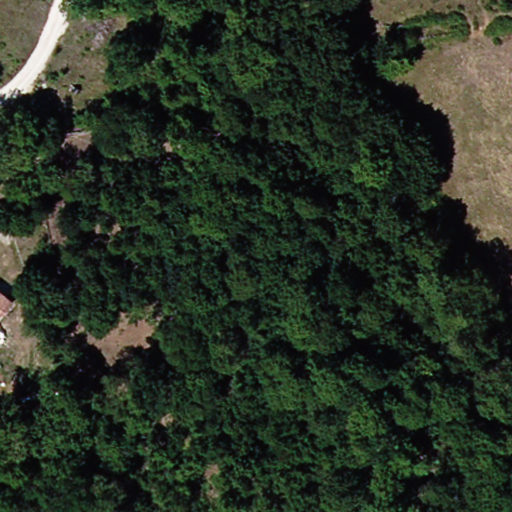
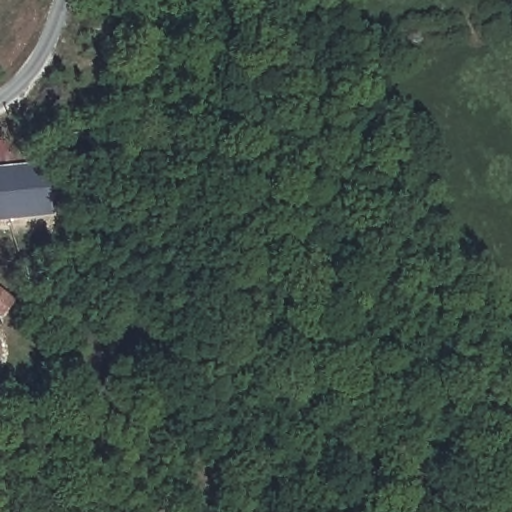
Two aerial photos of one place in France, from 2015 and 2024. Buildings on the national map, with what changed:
new [(0,167),(44,164),(50,216),(0,220),(0,167)]
new [(0,289),(15,302),(0,318),(0,289)]

